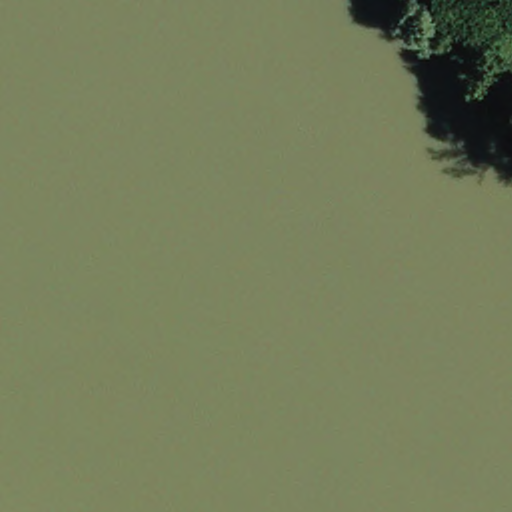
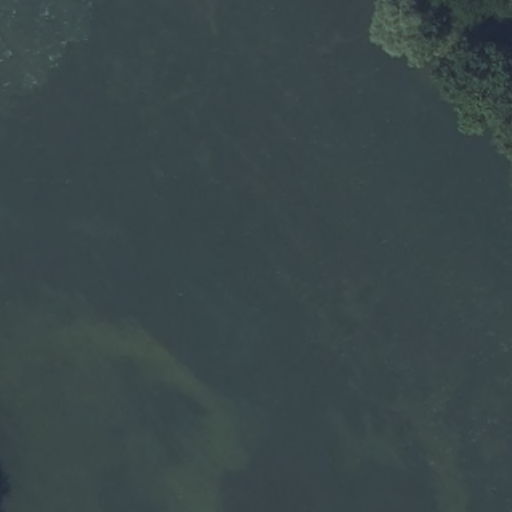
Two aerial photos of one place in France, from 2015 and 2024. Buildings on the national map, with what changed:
[]

